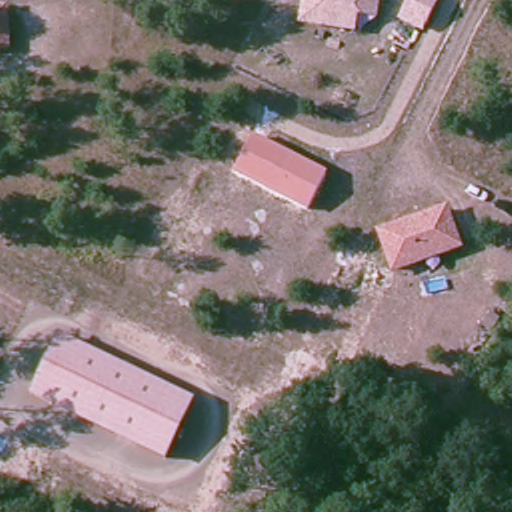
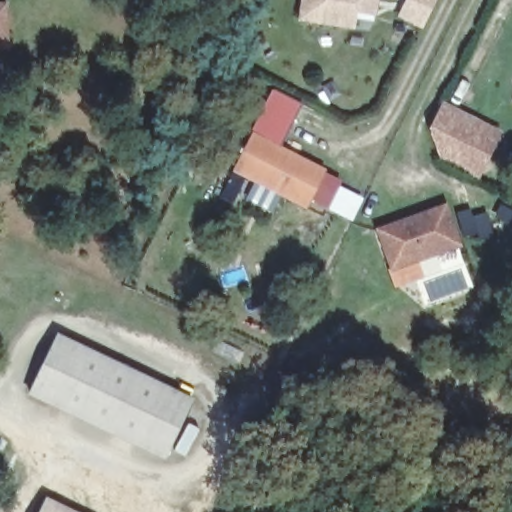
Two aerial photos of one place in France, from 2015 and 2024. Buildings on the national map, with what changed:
unchanged [(377,14),(358,12),(355,29),(296,20),(299,0),(379,0),(377,14)]
unchanged [(405,0),(436,0),(421,29),(397,16),(405,0)]
unchanged [(10,47),(0,48),(0,2),(7,1),(10,47)]
new [(444,106),(483,129),(476,142),(495,151),(478,182),(443,165),(432,130),(444,106)]
unchanged [(306,205),(232,170),(251,131),(325,167),(306,205)]
unchanged [(462,245),(391,272),(374,227),(446,201),(462,245)]
unchanged [(164,458),(30,396),(58,335),(194,397),(164,458)]
new [(38,512),(46,496),(77,512),(38,512)]

